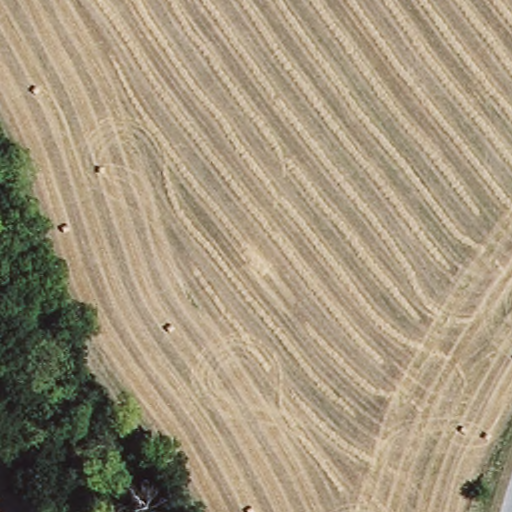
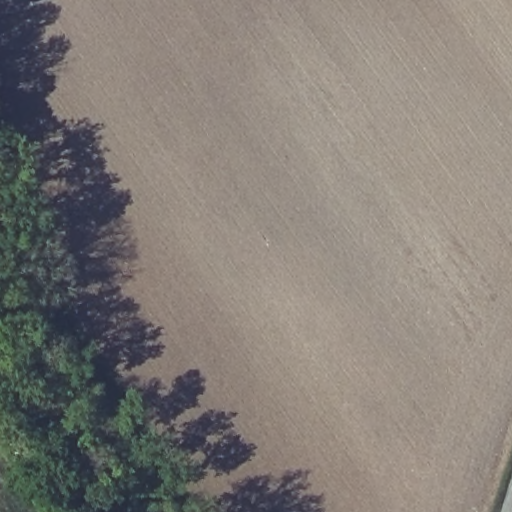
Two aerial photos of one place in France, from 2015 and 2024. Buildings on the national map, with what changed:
[]

